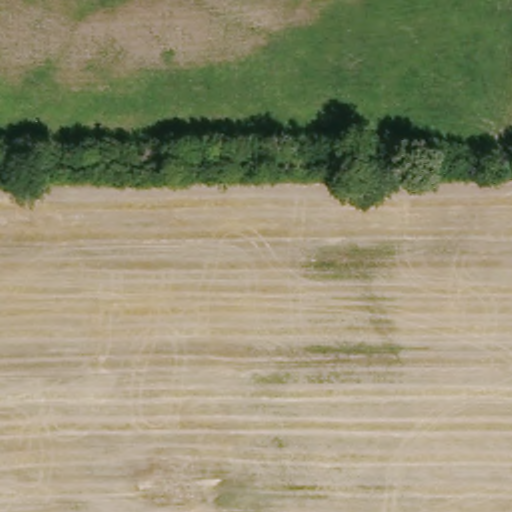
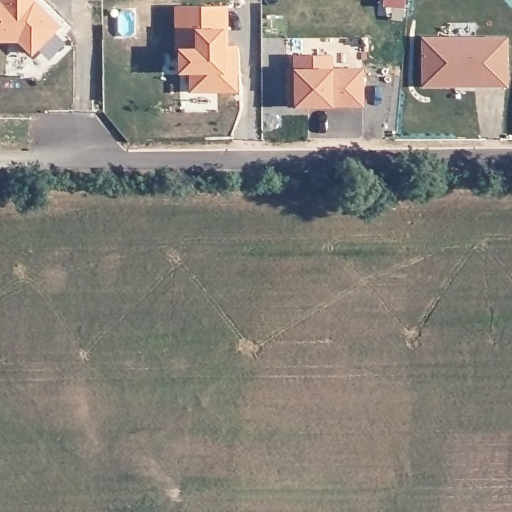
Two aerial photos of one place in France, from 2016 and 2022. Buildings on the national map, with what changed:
new [(0,40),(0,0),(37,0),(60,24),(32,51),(18,39),(0,40)]
new [(176,4),(227,4),(227,45),(235,45),(237,90),(191,88),(191,72),(177,71),(178,46),(175,46),(176,4)]
new [(422,85),(421,35),(506,35),(506,84),(422,85)]
new [(331,105),(294,105),(286,105),(286,67),(293,68),(293,55),(331,52),(332,67),(363,67),(363,104),(331,105)]

